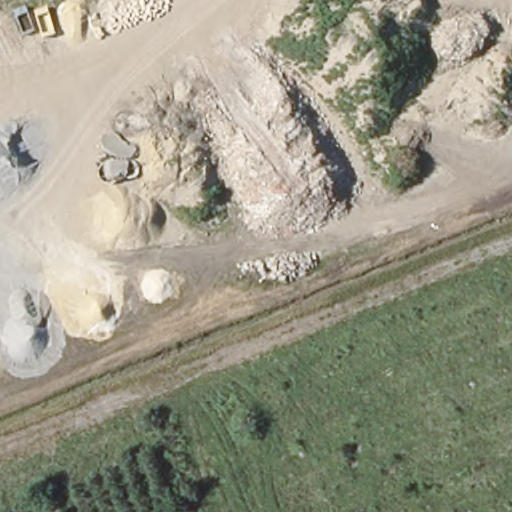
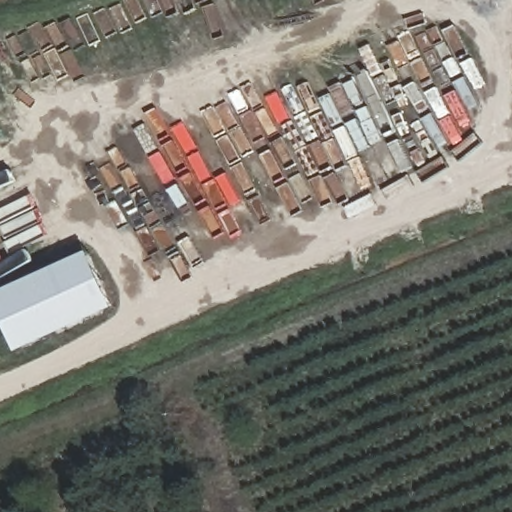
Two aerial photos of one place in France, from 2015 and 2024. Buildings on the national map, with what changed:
new [(21,353),(0,307),(0,294),(92,251),(118,308),(21,353)]

